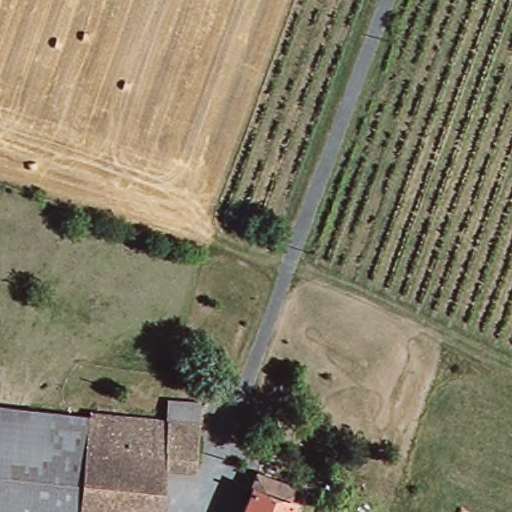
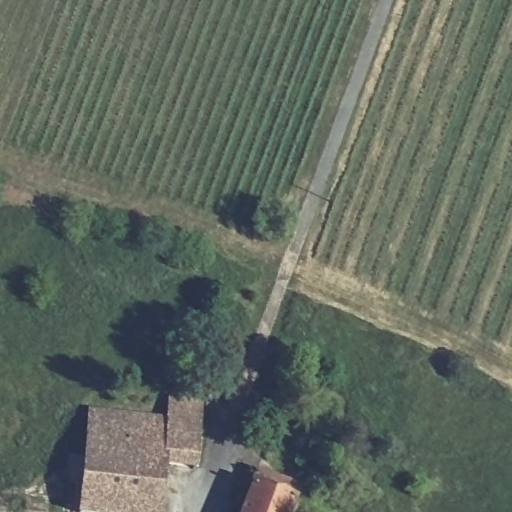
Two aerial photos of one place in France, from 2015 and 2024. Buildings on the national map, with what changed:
unchanged [(163,406),(164,381),(197,383),(193,458),(162,456),(158,512),(79,512),(84,410),(84,401),(163,406)]
demolished [(79,512),(62,512),(0,508),(0,405),(84,410),(79,512)]
unchanged [(298,485),(288,512),(235,512),(253,467),(298,485)]

